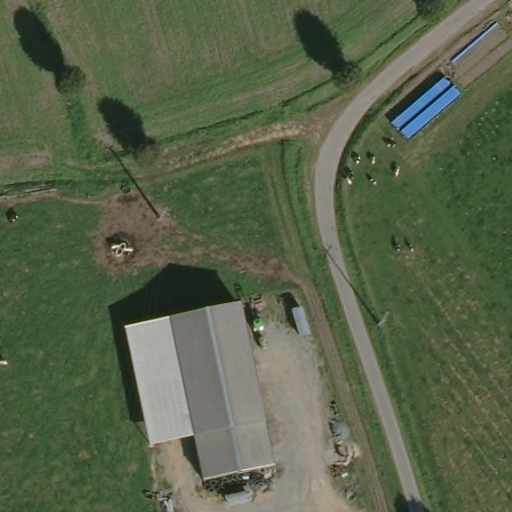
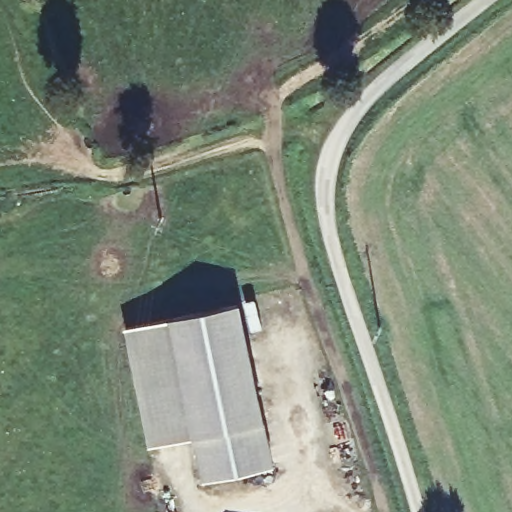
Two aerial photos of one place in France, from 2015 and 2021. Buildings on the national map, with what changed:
unchanged [(172,320),(240,304),(277,466),(209,482),(172,320)]
unchanged [(124,330),(172,320),(198,436),(147,445),(124,330)]

